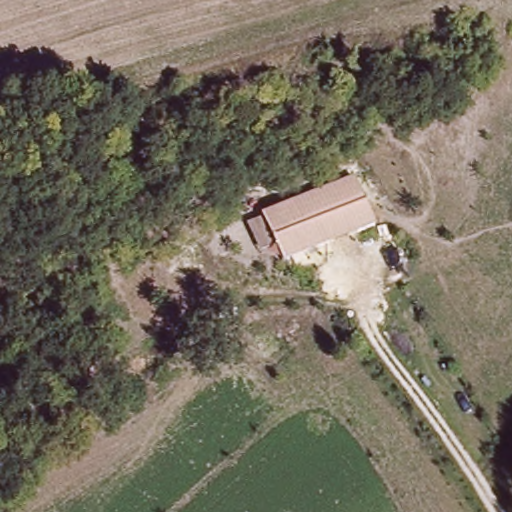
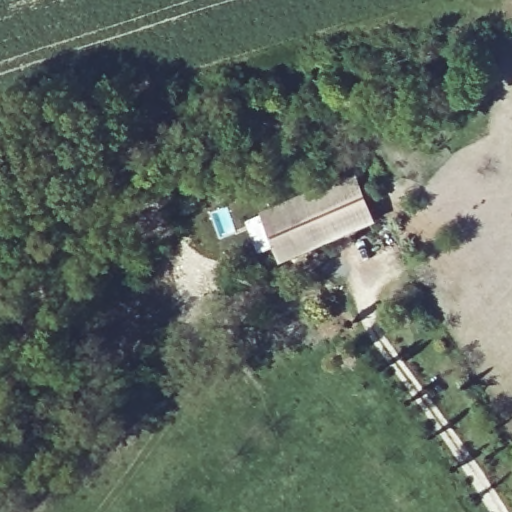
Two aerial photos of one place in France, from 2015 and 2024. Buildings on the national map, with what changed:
unchanged [(376,220),(284,263),(261,213),(355,173),(376,220)]

